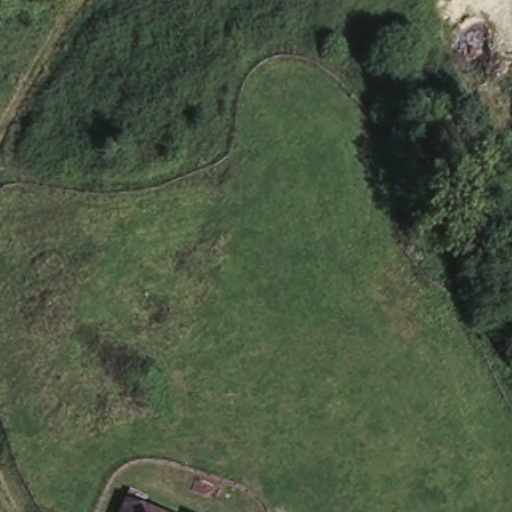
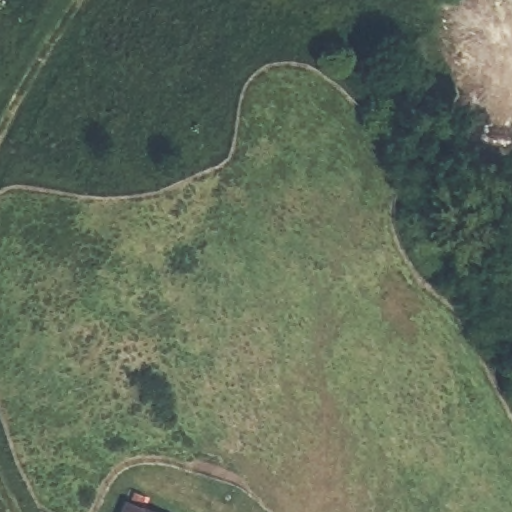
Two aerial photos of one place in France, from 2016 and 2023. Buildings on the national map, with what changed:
unchanged [(145,500),(176,512),(116,512),(120,501),(140,509),(145,500)]

